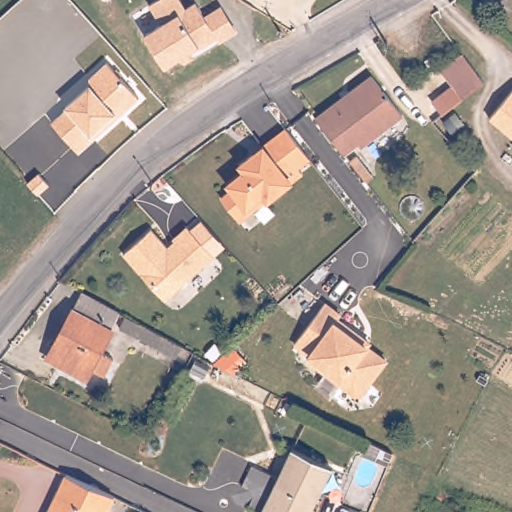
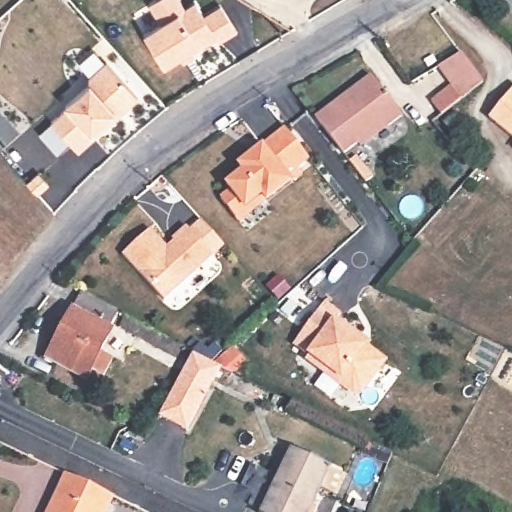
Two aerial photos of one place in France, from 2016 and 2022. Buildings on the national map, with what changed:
unchanged [(219,43),(216,37),(163,70),(143,35),(159,24),(149,5),(158,0),(181,0),(186,9),(197,2),(206,16),(222,6),(238,32),(219,43)]
unchanged [(432,106),(452,90),(437,69),(460,51),(484,85),(474,93),(461,103),(442,120),(432,106)]
unchanged [(428,69),(423,63),(431,57),(436,64),(428,69)]
unchanged [(141,99),(79,155),(49,120),(89,85),(89,76),(106,62),(141,99)]
unchanged [(344,153),(316,117),(371,74),(400,112),(387,123),(384,120),(363,137),(344,153)]
unchanged [(512,91),(512,133),(491,116),(512,91)]
unchanged [(238,219),(232,211),(225,201),(235,193),(231,187),(248,174),(243,168),(256,158),(266,150),(289,132),(312,161),(310,164),(301,170),(305,176),(294,185),(271,204),(243,225),(238,219)]
unchanged [(151,230),(169,250),(171,252),(179,245),(177,244),(173,240),(187,227),(192,232),(214,256),(165,301),(141,274),(123,255),(151,230)]
unchanged [(104,371),(92,365),(86,375),(53,358),(47,355),(52,346),(72,310),(83,288),(113,305),(119,307),(111,323),(113,325),(101,348),(114,355),(104,371)]
unchanged [(304,331),(324,304),(340,316),(337,320),(360,338),(358,341),(385,361),(377,372),(361,395),(354,395),(306,360),(309,355),(294,344),(304,331)]
unchanged [(120,322),(126,311),(135,316),(181,342),(175,352),(120,322)]
new [(235,375),(221,368),(188,431),(159,417),(193,353),(213,363),(232,347),(247,362),(235,375)]
unchanged [(309,512),(261,512),(291,450),(330,467),(309,512)]
unchanged [(105,512),(49,512),(67,475),(112,497),(105,512)]

